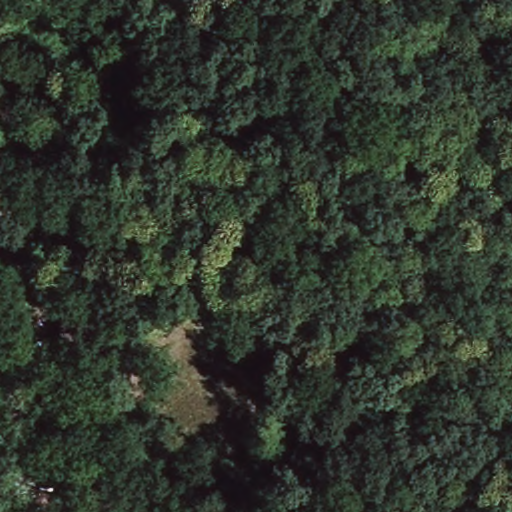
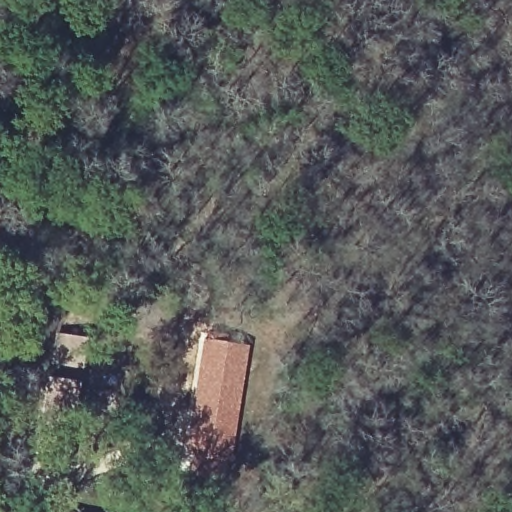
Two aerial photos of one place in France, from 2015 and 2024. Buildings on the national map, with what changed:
new [(202,337),(249,344),(230,467),(180,459),(202,337)]

